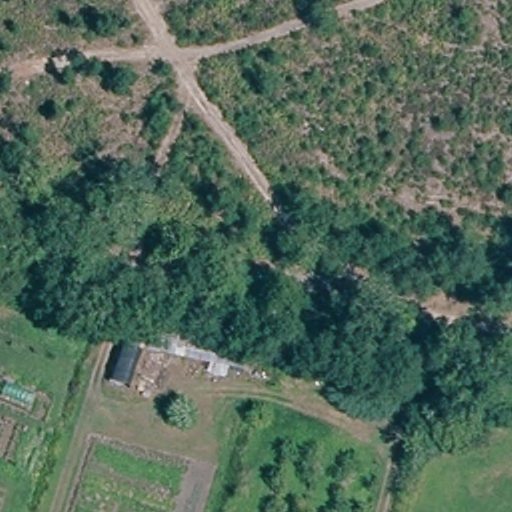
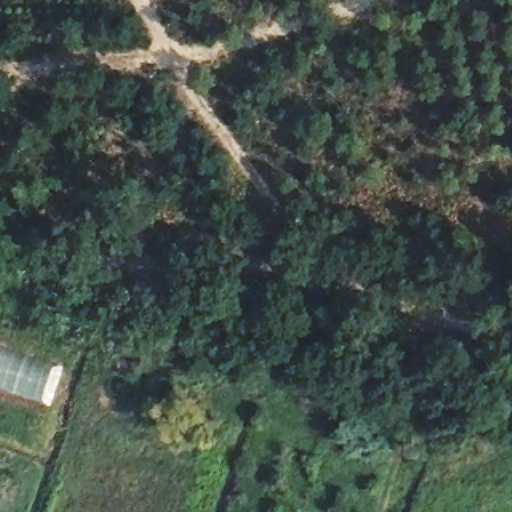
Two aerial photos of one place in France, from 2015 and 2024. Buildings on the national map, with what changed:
new [(41,400),(0,385),(0,349),(54,368),(41,400)]

